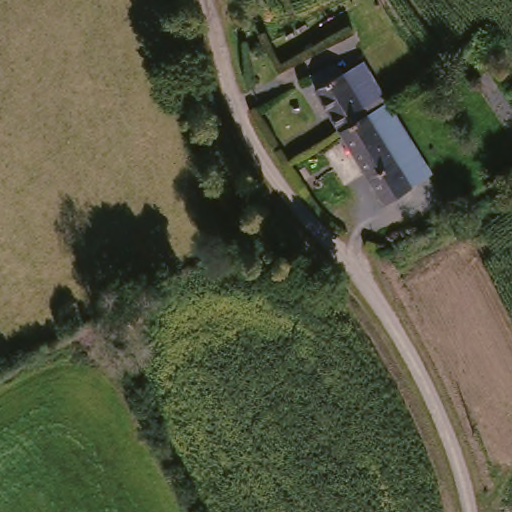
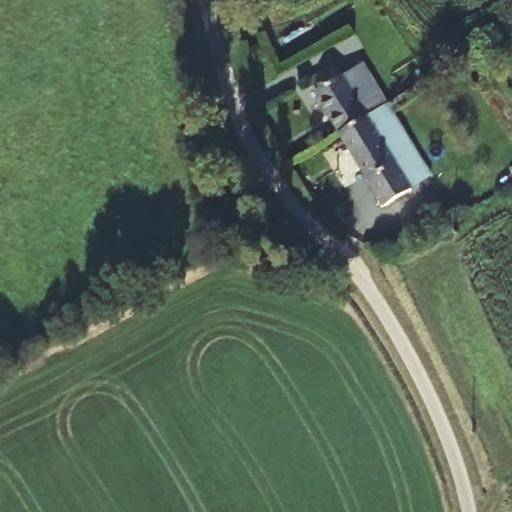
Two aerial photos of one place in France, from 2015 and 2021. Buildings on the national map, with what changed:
unchanged [(315,96),(327,89),(321,78),(333,71),(341,86),(346,82),(367,119),(338,135),(315,96)]
unchanged [(427,170),(405,182),(367,119),(386,105),(427,170)]
unchanged [(367,119),(405,182),(417,203),(388,221),(338,135),(367,119)]

